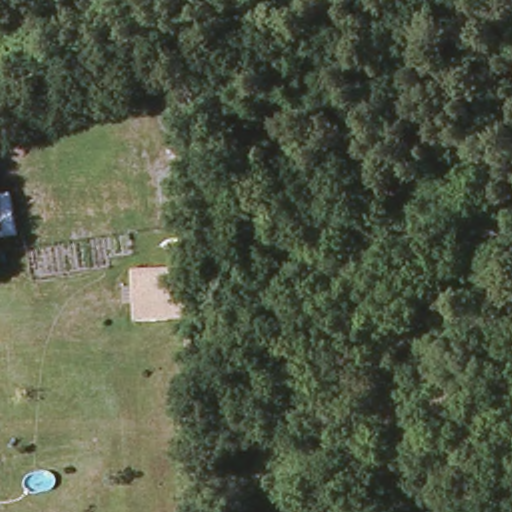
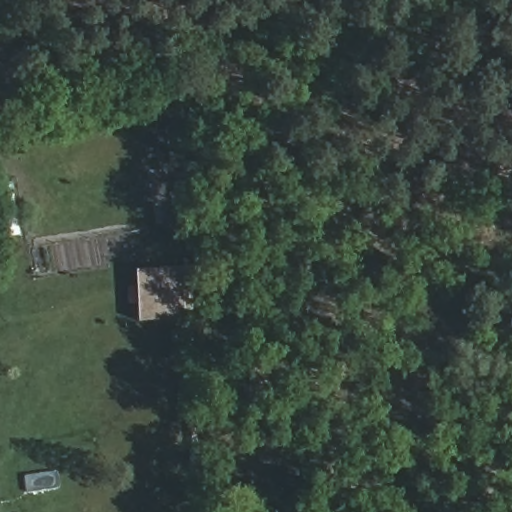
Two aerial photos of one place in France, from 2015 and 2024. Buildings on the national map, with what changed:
unchanged [(0,239),(0,193),(13,191),(20,237),(0,239)]
unchanged [(185,320),(135,322),(135,267),(185,268),(185,320)]

